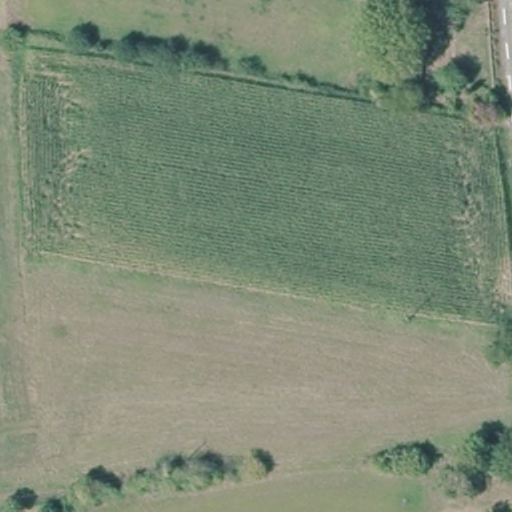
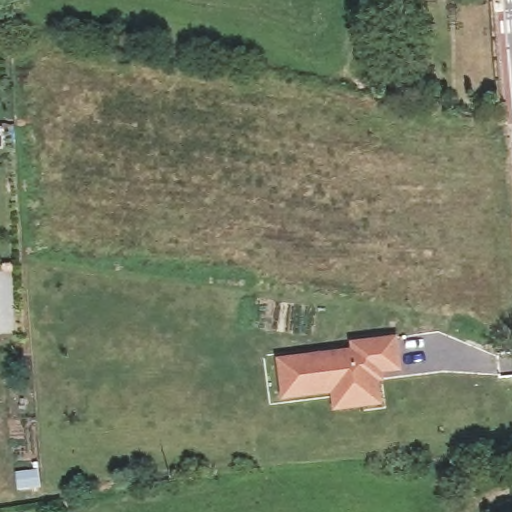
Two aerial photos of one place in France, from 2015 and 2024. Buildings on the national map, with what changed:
new [(275,357),(349,348),(348,341),(397,335),(401,370),(382,372),(383,381),(379,381),(382,405),(333,411),(331,393),(281,401),(275,357)]

